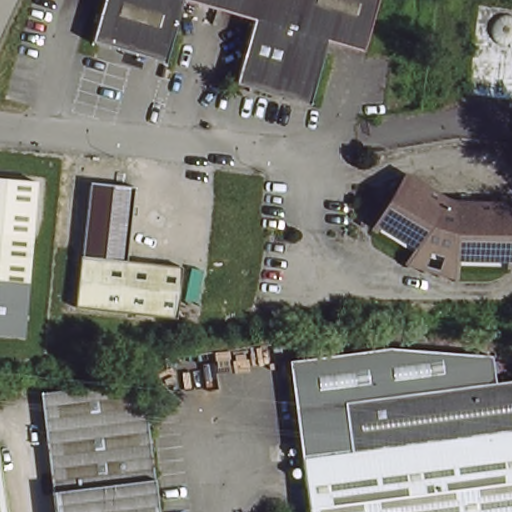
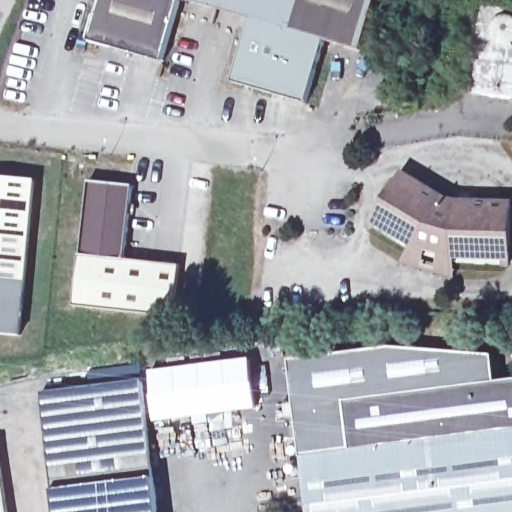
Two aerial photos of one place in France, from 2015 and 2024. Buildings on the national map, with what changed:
unchanged [(326,47),(307,111),(232,89),(250,24),(182,5),(164,69),(87,46),(101,0),(379,0),(362,57),(326,47)]
unchanged [(407,274),(410,257),(371,233),(402,178),(452,205),(512,209),(509,268),(450,268),(446,285),(407,274)]
unchanged [(17,338),(0,336),(0,182),(33,186),(17,338)]
unchanged [(132,188),(125,261),(182,268),(178,320),(75,306),(87,182),(132,188)]
unchanged [(305,455),(292,356),(392,342),(496,351),(500,378),(512,376),(512,512),(312,512),(305,455)]
new [(249,357),(259,410),(153,423),(147,370),(249,357)]
unchanged [(140,383),(157,512),(53,512),(37,396),(140,383)]
unchanged [(0,503),(1,512),(0,512),(0,503)]

